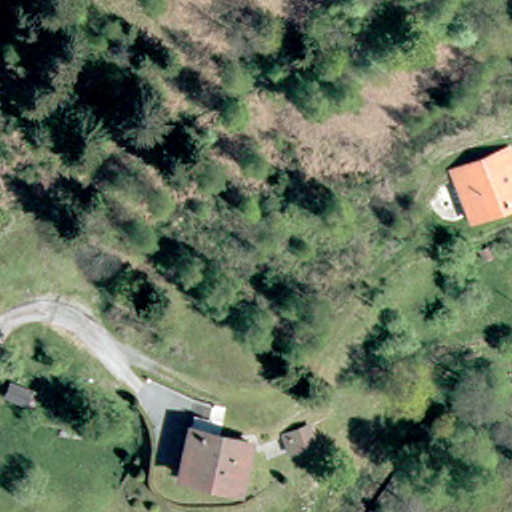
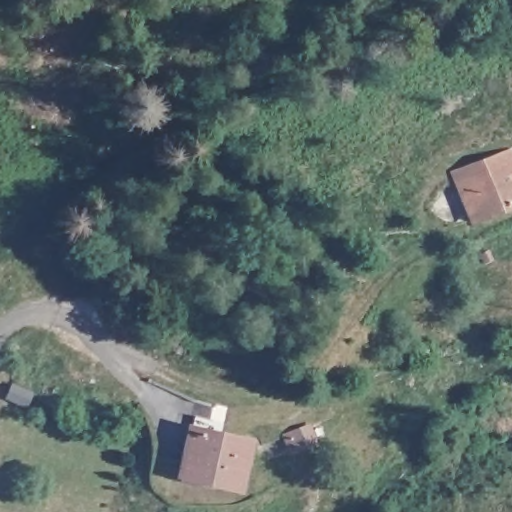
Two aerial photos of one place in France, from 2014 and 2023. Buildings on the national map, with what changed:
unchanged [(451,180),(466,172),(506,155),(512,168),(512,207),(471,225),(451,180)]
unchanged [(15,383),(35,394),(29,406),(7,395),(15,383)]
unchanged [(225,425),(221,437),(255,448),(240,496),(181,477),(200,417),(225,425)]

